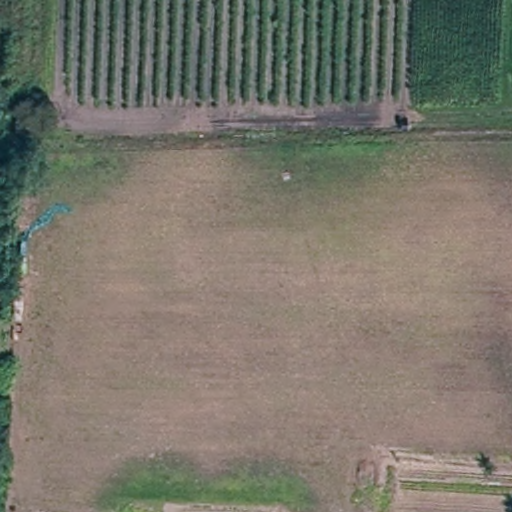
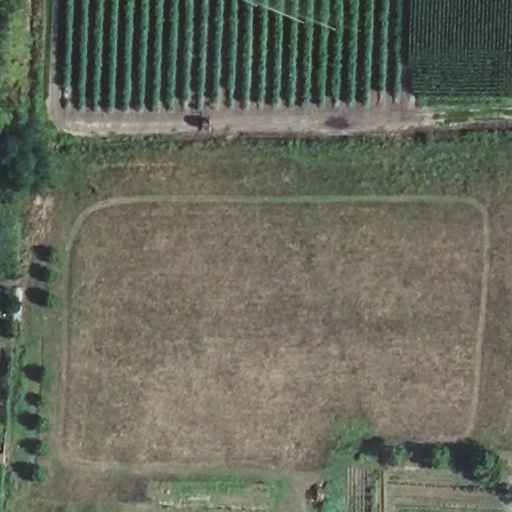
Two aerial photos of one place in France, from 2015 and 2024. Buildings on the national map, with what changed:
[]

